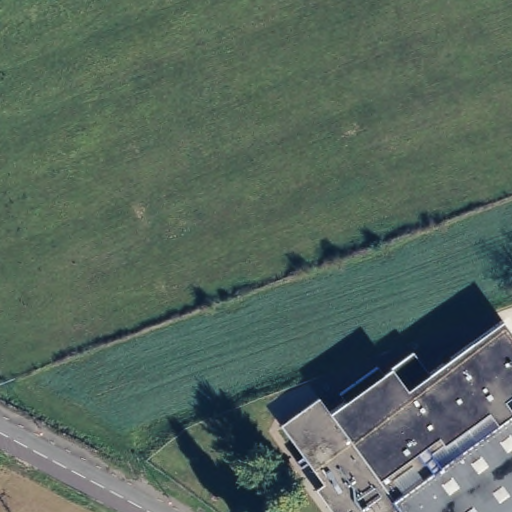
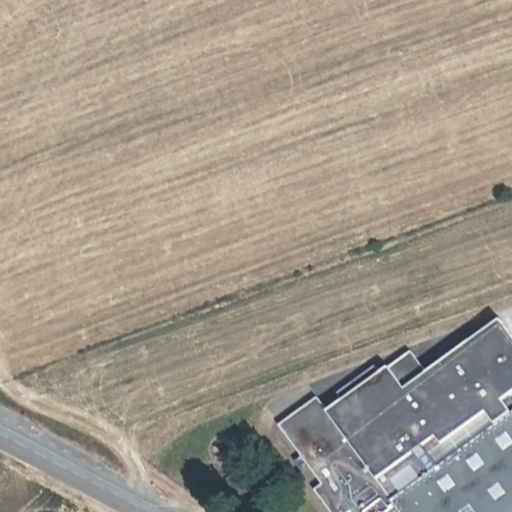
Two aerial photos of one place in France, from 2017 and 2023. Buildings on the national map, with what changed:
unchanged [(318,489),(275,430),(313,402),(323,416),(338,406),(333,398),(371,371),(376,378),(407,356),(422,379),(496,325),(512,346),(512,396),(498,406),(507,418),(512,415),(512,512),(323,512),(310,495),(318,489)]

